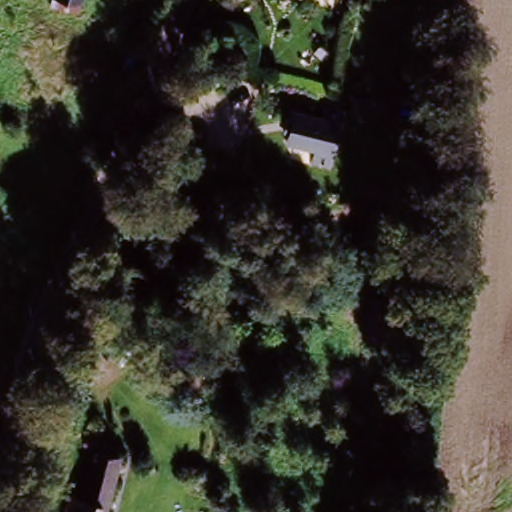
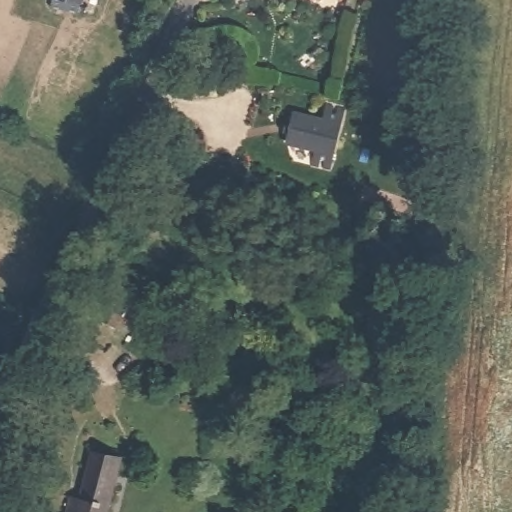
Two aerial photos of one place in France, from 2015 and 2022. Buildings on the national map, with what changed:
unchanged [(89,0),(86,12),(56,6),(58,0),(89,0)]
unchanged [(329,119),(330,111),(346,115),(336,162),(320,159),(322,150),(291,144),(296,115),(329,119)]
unchanged [(123,281),(142,285),(136,315),(116,311),(123,281)]
unchanged [(408,299),(397,346),(367,340),(377,292),(408,299)]
unchanged [(115,454),(102,512),(70,512),(73,499),(81,501),(94,449),(115,454)]

